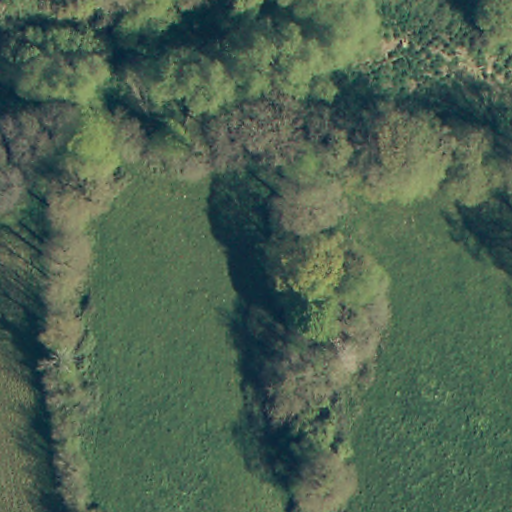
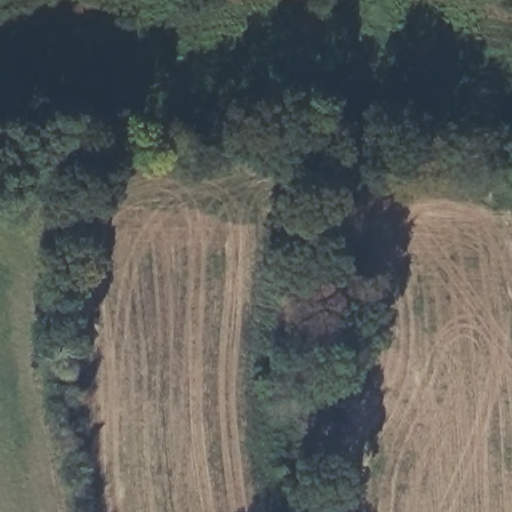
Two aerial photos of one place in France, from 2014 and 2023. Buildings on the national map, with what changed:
[]

